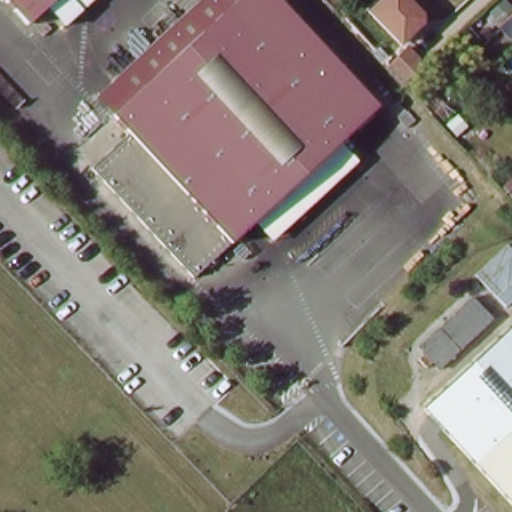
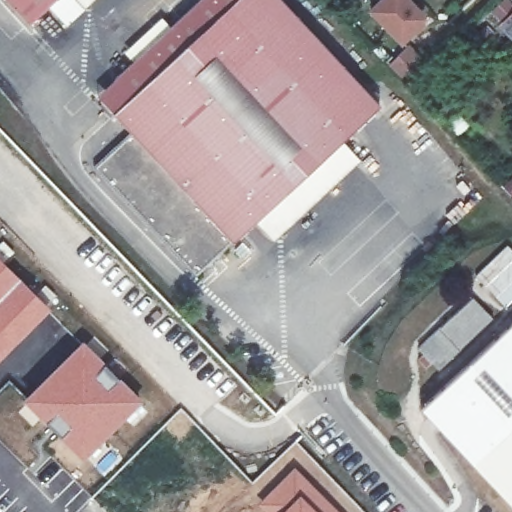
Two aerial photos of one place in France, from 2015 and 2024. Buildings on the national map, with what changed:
unchanged [(9,0),(66,0),(36,29),(9,0)]
unchanged [(75,0),(103,0),(88,14),(75,0)]
unchanged [(95,171),(131,136),(115,118),(241,0),(280,0),(379,107),(341,143),(258,223),(198,280),(95,171)]
unchanged [(210,0),(240,0),(114,116),(101,99),(210,0)]
unchanged [(406,0),(420,16),(419,23),(399,42),(369,10),(380,0),(406,0)]
unchanged [(498,26),(512,16),(512,41),(498,26)]
new [(404,48),(419,66),(401,83),(384,66),(404,48)]
unchanged [(359,161),(276,242),(258,223),(341,143),(359,161)]
new [(13,252),(4,261),(51,308),(0,359),(0,241),(3,239),(13,252)]
unchanged [(479,278),(510,246),(512,248),(512,309),(479,278)]
unchanged [(502,320),(438,379),(419,358),(478,298),(502,320)]
unchanged [(469,462),(417,407),(511,315),(512,316),(512,506),(469,462)]
new [(84,339),(145,402),(85,461),(23,401),(84,339)]
new [(259,504),(294,466),(340,512),(267,512),(259,504)]

